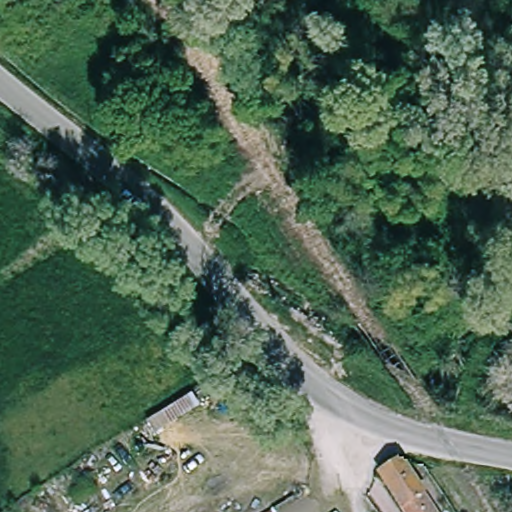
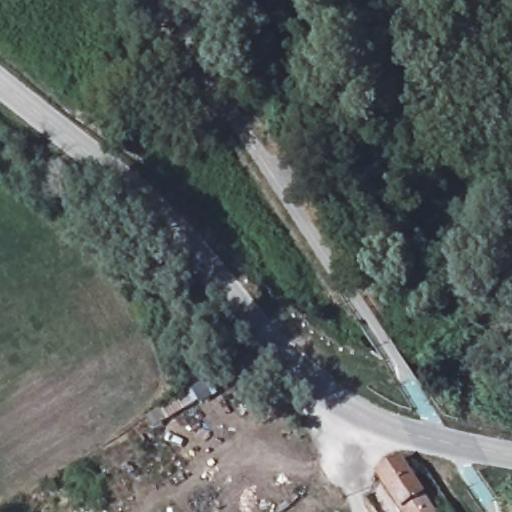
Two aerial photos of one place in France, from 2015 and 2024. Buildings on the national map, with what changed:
unchanged [(407,512),(381,473),(405,456),(440,512),(407,512)]

